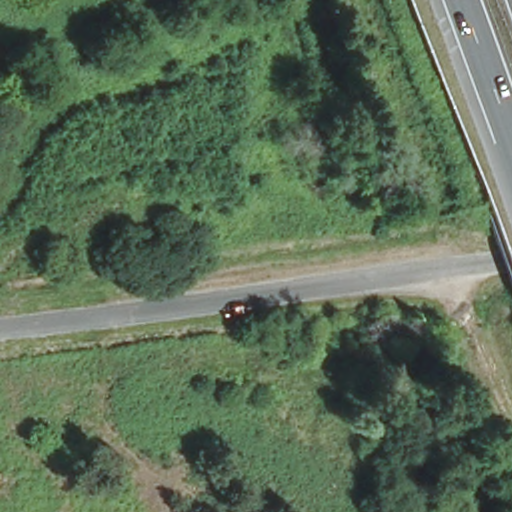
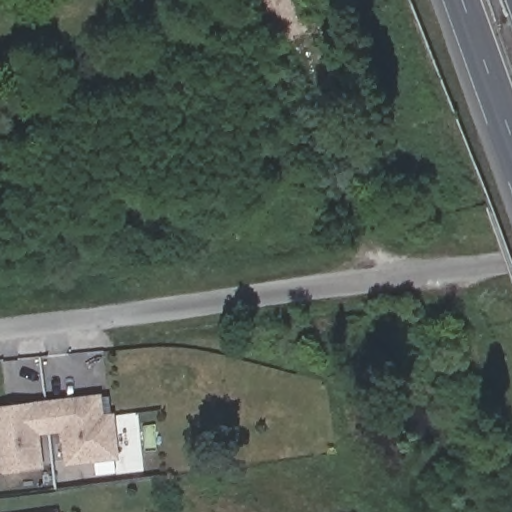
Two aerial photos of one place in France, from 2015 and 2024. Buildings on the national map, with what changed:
new [(41,468),(0,473),(0,406),(99,393),(101,414),(112,412),(117,459),(62,466),(58,432),(37,436),(41,468)]

